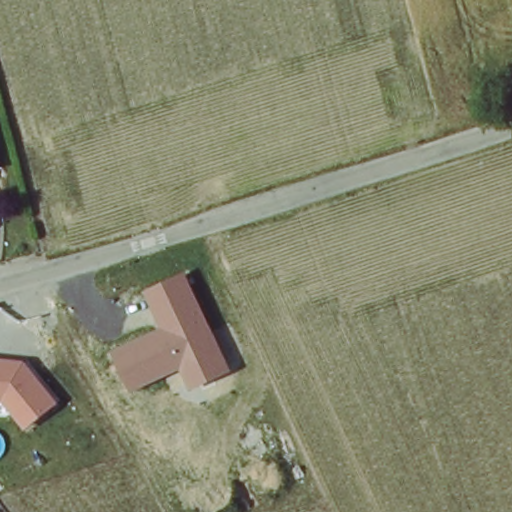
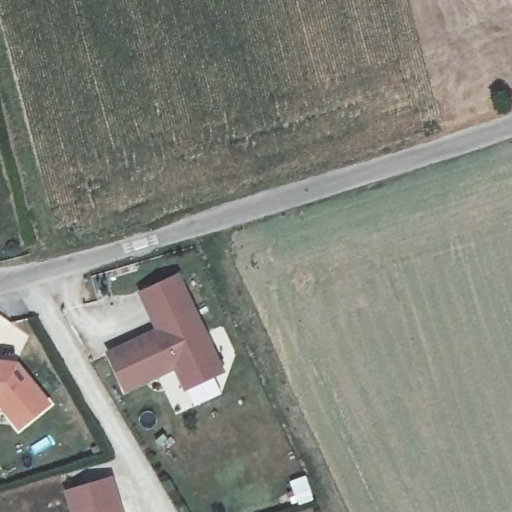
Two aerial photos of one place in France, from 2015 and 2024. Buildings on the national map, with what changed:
unchanged [(226,373),(183,393),(173,373),(125,396),(103,352),(154,330),(137,293),(181,272),(226,373)]
unchanged [(0,410),(0,360),(18,362),(51,405),(20,431),(0,410)]
new [(112,477),(122,512),(70,512),(64,491),(112,477)]

